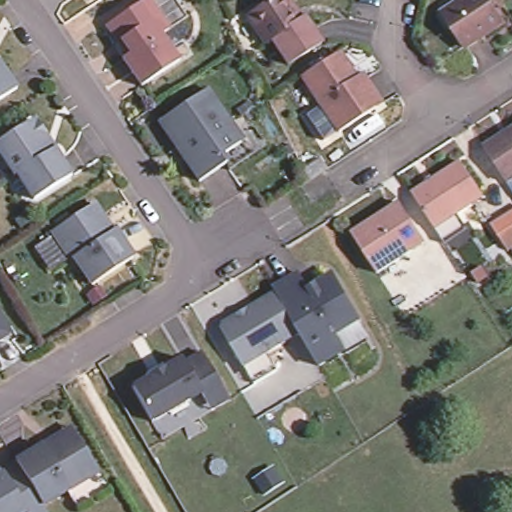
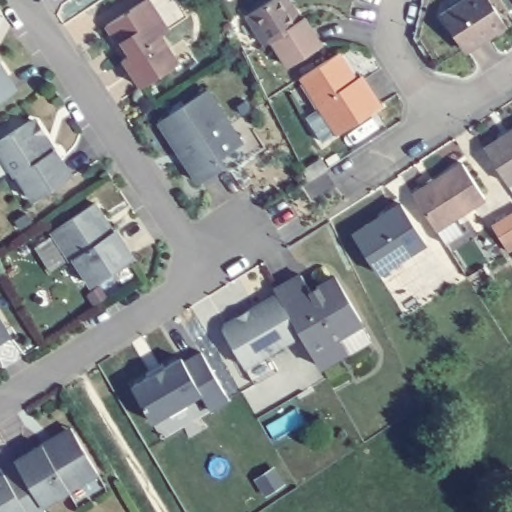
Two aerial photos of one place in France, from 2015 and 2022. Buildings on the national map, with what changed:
unchanged [(142,0),(150,0),(168,27),(160,33),(180,59),(142,85),(122,58),(130,53),(121,40),(116,39),(106,25),(142,0)]
unchanged [(271,42),(263,46),(248,15),(277,0),(288,0),(301,26),(271,42)]
unchanged [(503,28),(465,50),(446,16),(474,0),(488,0),(503,28)]
unchanged [(307,23),(321,50),(285,70),(271,42),(301,26),(307,23)]
unchanged [(18,81),(0,94),(0,58),(18,81)]
unchanged [(379,113),(374,116),(336,140),(303,83),(309,80),(341,61),(359,91),(363,88),(379,113)]
unchanged [(203,87),(239,138),(217,154),(222,162),(196,180),(185,163),(187,158),(180,148),(176,151),(155,120),(203,87)]
unchanged [(33,112),(39,113),(73,168),(33,194),(16,167),(18,165),(0,136),(0,133),(33,112)]
unchanged [(512,182),(508,184),(498,167),(486,149),(512,132),(512,182)]
unchanged [(300,182),(295,168),(310,159),(318,171),(300,182)]
unchanged [(463,166),(485,200),(436,232),(416,199),(415,198),(463,166)]
unchanged [(96,200),(105,213),(104,220),(114,230),(118,227),(138,254),(97,284),(77,256),(75,258),(55,230),(96,200)]
unchanged [(403,203),(427,241),(380,273),(356,234),(403,203)]
unchanged [(512,247),(500,227),(512,219),(512,247)]
unchanged [(280,287),(306,272),(318,295),(325,291),(322,284),(339,274),(364,319),(363,319),(372,335),(323,364),(305,331),(281,291),(280,287)]
unchanged [(227,328),(230,321),(241,314),(254,307),(281,291),(305,331),(304,331),(248,364),(227,328)]
unchanged [(15,331),(0,340),(0,309),(15,331)]
unchanged [(211,404),(208,398),(201,387),(152,416),(132,381),(182,352),(185,356),(202,346),(226,387),(230,393),(211,404)]
unchanged [(45,442),(47,447),(76,430),(100,470),(42,503),(16,458),(45,442)]
unchanged [(47,512),(28,512),(26,509),(22,512),(0,512),(0,473),(3,471),(1,467),(16,458),(42,503),(47,512)]

